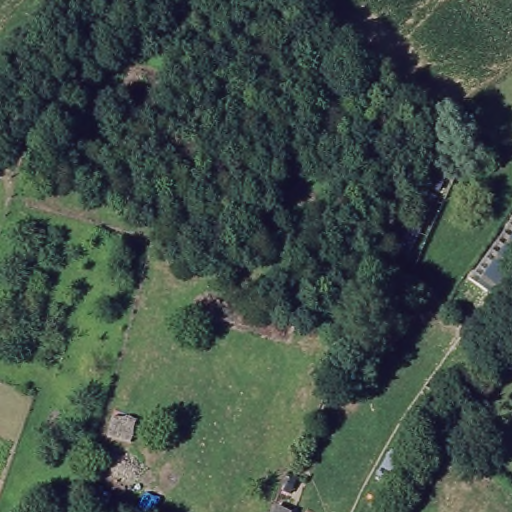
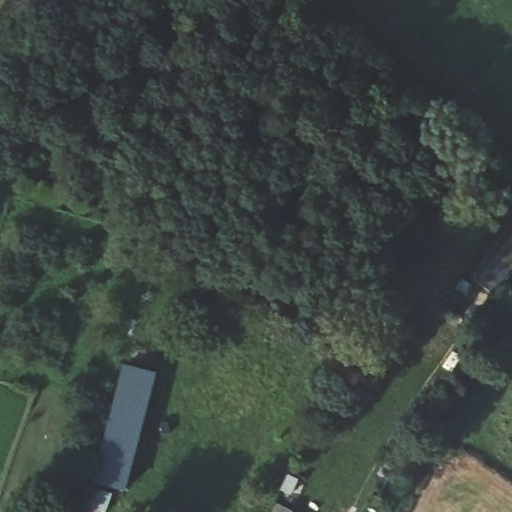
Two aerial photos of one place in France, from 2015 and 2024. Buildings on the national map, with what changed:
new [(125,495),(111,491),(106,512),(85,512),(122,365),(155,374),(125,495)]
unchanged [(290,507),(287,512),(269,512),(275,500),(290,507)]

